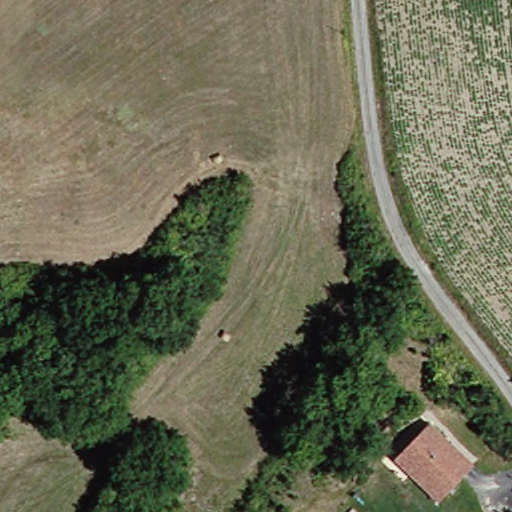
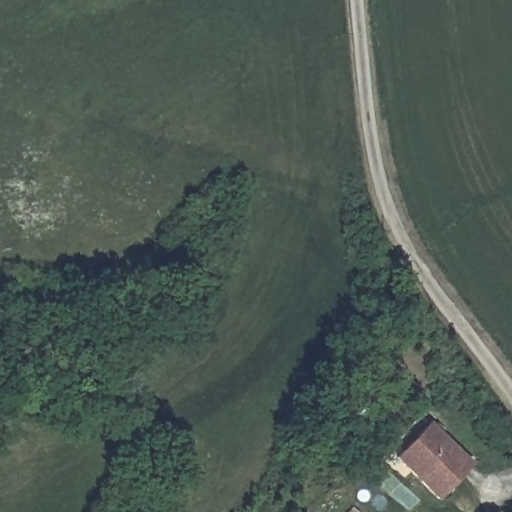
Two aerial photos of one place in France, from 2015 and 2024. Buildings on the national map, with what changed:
unchanged [(390,457),(425,421),(442,442),(466,467),(453,478),(430,499),(390,457)]

